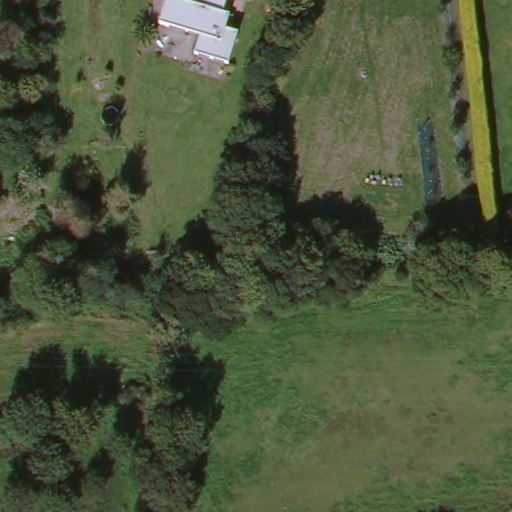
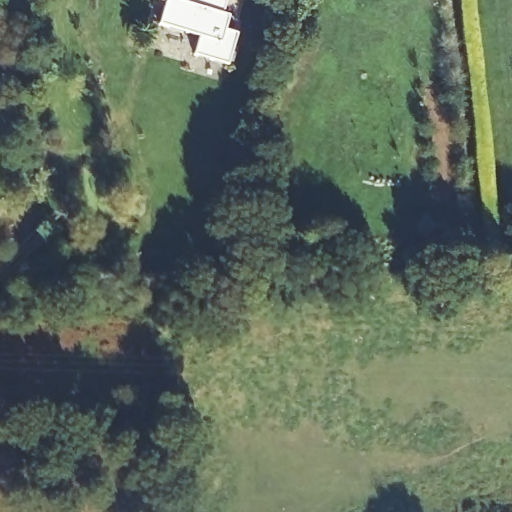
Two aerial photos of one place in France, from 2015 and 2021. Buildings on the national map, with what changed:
unchanged [(219,32),(226,36),(221,49),(233,54),(221,84),(188,71),(195,53),(156,37),(164,16),(154,12),(158,0),(184,0),(226,17),(219,32)]

